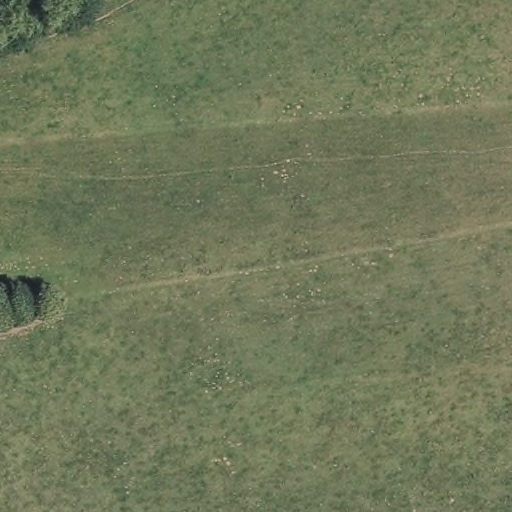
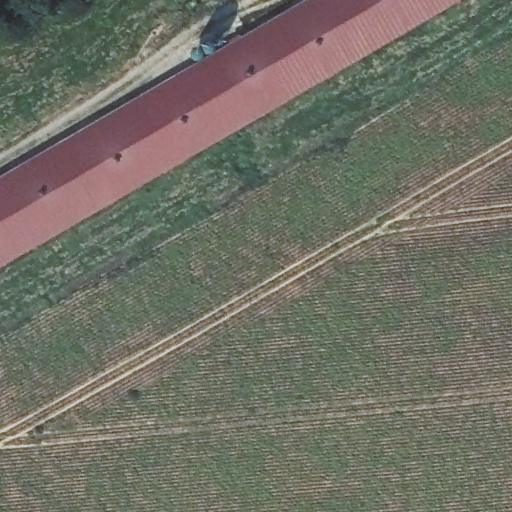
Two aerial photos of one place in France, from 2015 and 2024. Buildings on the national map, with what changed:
new [(305,0),(463,0),(0,268),(0,176),(305,0)]

